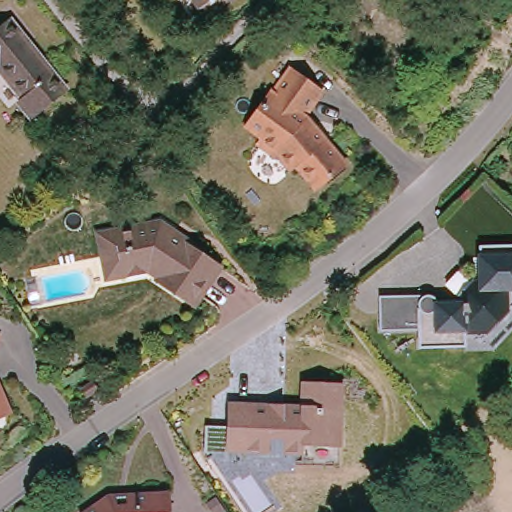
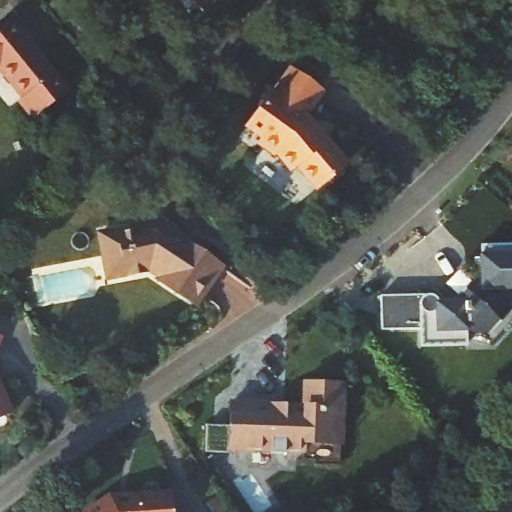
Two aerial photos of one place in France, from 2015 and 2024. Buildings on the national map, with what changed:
unchanged [(194,0),(228,0),(204,15),(194,0)]
unchanged [(22,30),(18,36),(60,82),(37,108),(20,90),(24,84),(0,56),(0,9),(2,7),(22,30)]
unchanged [(345,157),(313,182),(297,160),(289,167),(275,147),(269,154),(255,140),(260,133),(243,118),(290,62),(322,88),(306,109),(345,157)]
unchanged [(203,239),(200,243),(224,262),(195,300),(162,271),(160,260),(126,268),(107,272),(98,227),(114,223),(165,211),(203,239)]
unchanged [(435,290),(436,291),(437,291),(438,291),(439,291),(439,292),(440,292),(440,293),(441,293),(442,294),(442,295),(443,295),(443,296),(444,296),(444,297),(444,298),(445,298),(445,299),(445,300),(464,299),(464,294),(480,277),(482,277),(481,254),(487,253),(487,242),(512,242),(512,295),(512,310),(499,324),(472,325),(473,341),(427,342),(427,325),(389,325),(388,291),(435,290)]
unchanged [(0,338),(0,328),(4,330),(0,338)]
unchanged [(81,406),(76,398),(69,387),(65,381),(87,370),(101,393),(81,406)]
unchanged [(0,381),(13,409),(0,415),(0,381)]
unchanged [(299,405),(300,382),(346,385),(344,448),(312,449),(310,456),(226,452),(228,401),(299,405)]
unchanged [(170,512),(82,512),(81,510),(109,494),(168,485),(170,512)]

